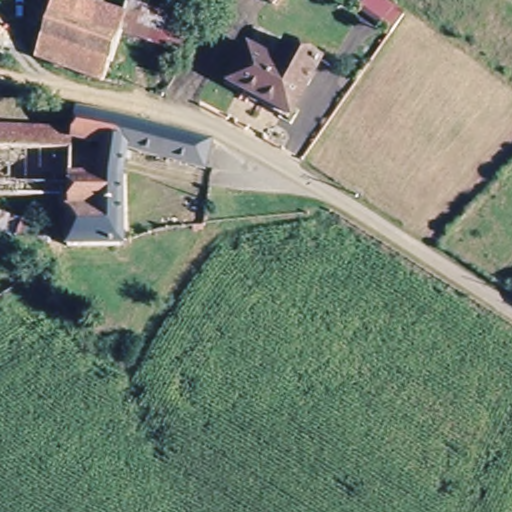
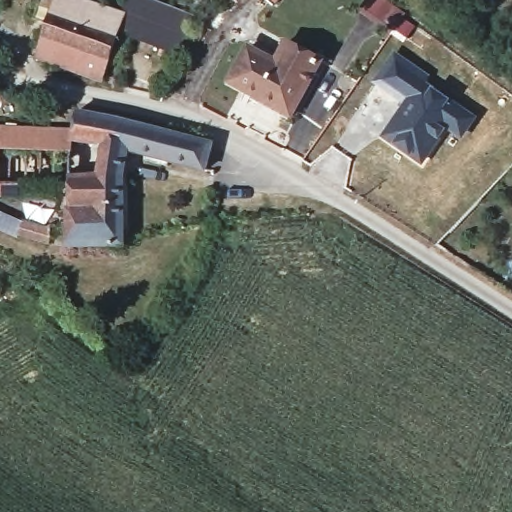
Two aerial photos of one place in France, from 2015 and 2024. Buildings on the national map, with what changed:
unchanged [(113,31),(99,83),(31,61),(50,0),(66,0),(117,17),(113,31)]
unchanged [(278,0),(273,6),(266,0),(278,0)]
unchanged [(356,9),(364,0),(389,0),(407,15),(389,36),(356,9)]
unchanged [(122,2),(190,25),(181,55),(113,31),(117,17),(122,2)]
unchanged [(280,65),(295,46),(325,71),(280,121),(230,80),(258,49),(280,65)]
new [(394,49),(432,75),(429,80),(480,116),(461,140),(448,130),(422,166),(378,135),(403,101),(371,81),(394,49)]
unchanged [(202,167),(125,150),(122,175),(122,241),(64,244),(63,211),(57,210),(56,199),(0,195),(0,126),(70,130),(73,110),(136,122),(209,141),(202,167)]
unchanged [(51,229),(48,239),(24,234),(26,221),(51,229)]

